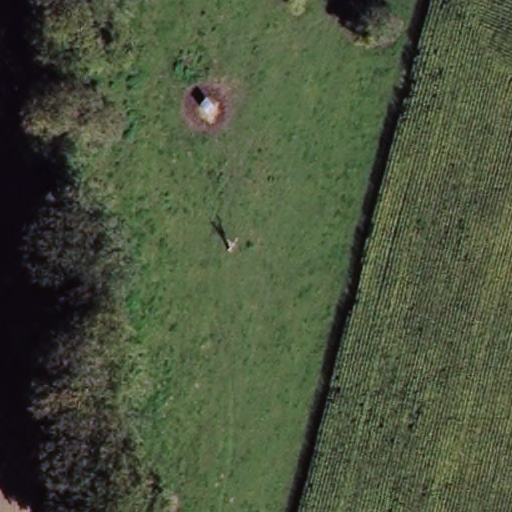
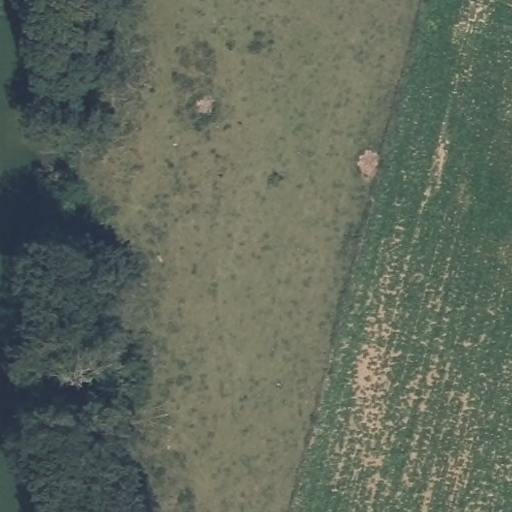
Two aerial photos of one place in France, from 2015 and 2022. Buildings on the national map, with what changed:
[]

